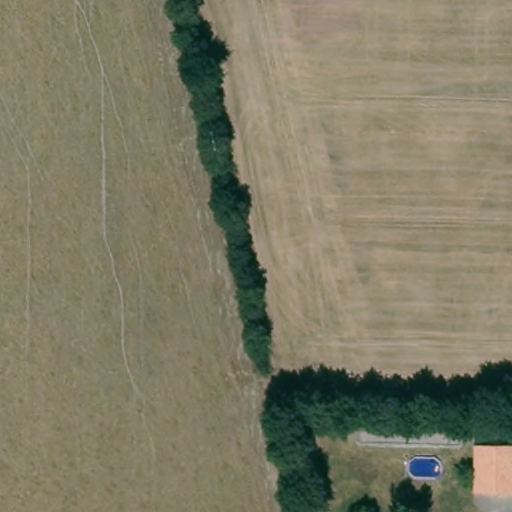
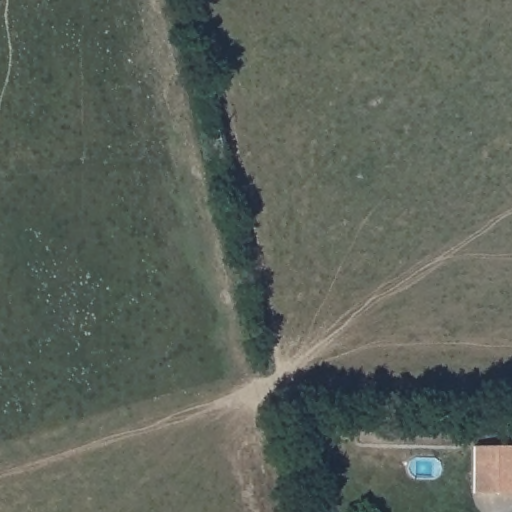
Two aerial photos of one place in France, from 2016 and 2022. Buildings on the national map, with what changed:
unchanged [(512,492),(477,490),(476,444),(512,444),(512,492)]

